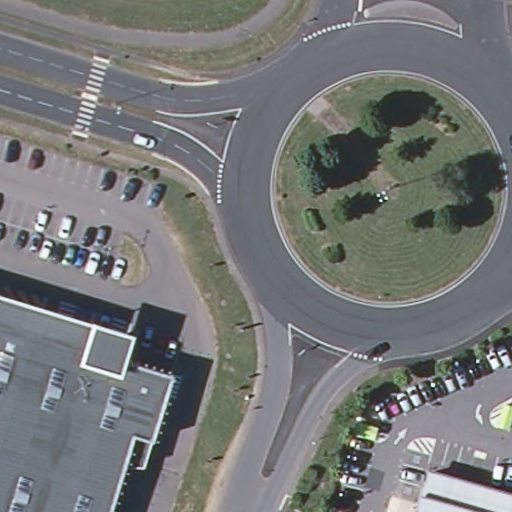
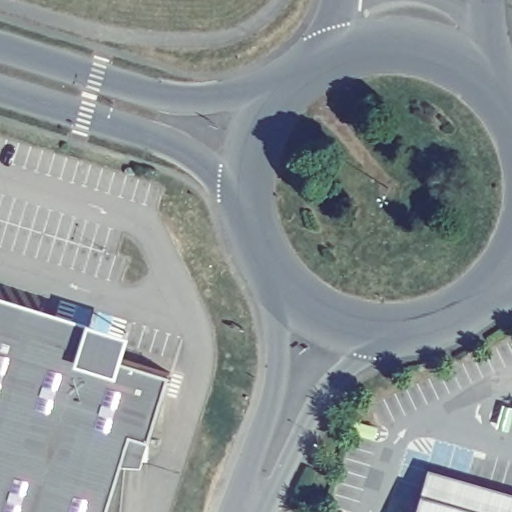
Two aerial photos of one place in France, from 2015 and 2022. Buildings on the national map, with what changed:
unchanged [(173,369),(0,317),(0,290),(180,345),(173,369)]
unchanged [(151,436),(133,430),(108,512),(0,512),(0,317),(173,369),(151,436)]
unchanged [(512,496),(512,512),(423,512),(434,473),(512,496)]

